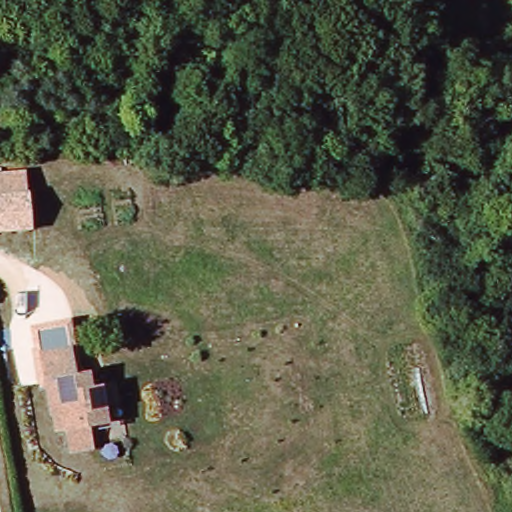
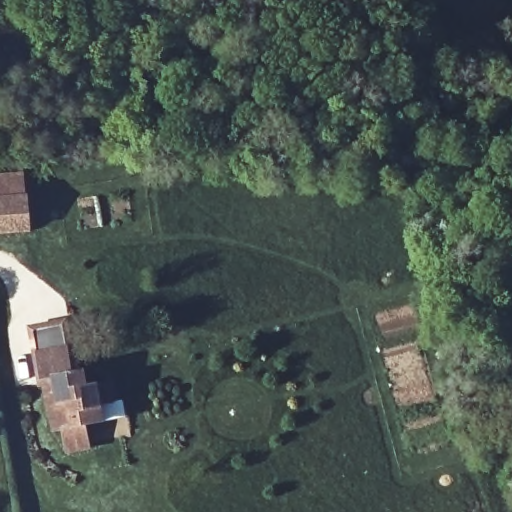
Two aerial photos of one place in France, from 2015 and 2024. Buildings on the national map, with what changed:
unchanged [(30,227),(0,229),(0,194),(28,193),(30,227)]
unchanged [(70,343),(78,370),(90,368),(92,383),(102,383),(109,422),(90,427),(94,450),(67,455),(62,430),(51,432),(37,350),(70,343)]

